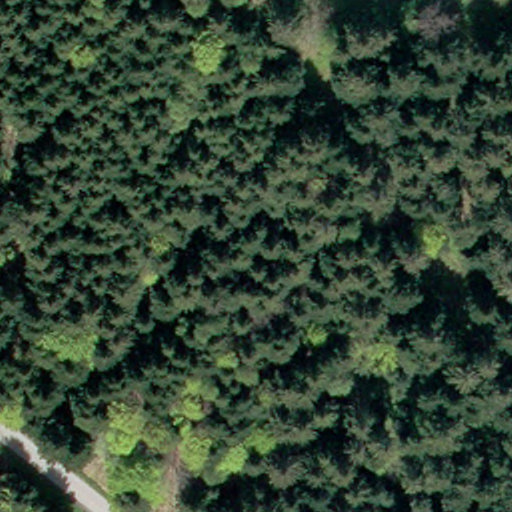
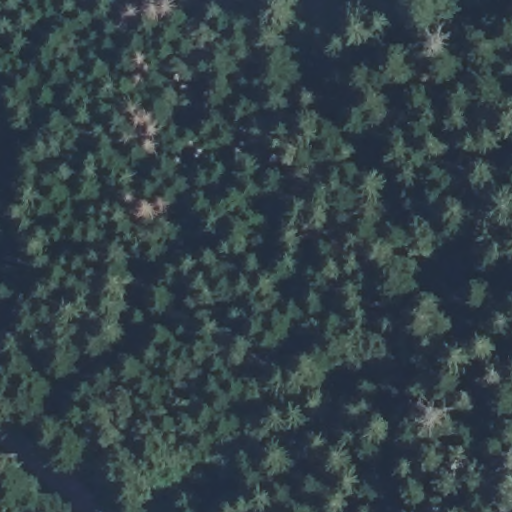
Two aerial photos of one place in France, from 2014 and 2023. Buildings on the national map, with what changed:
[]

